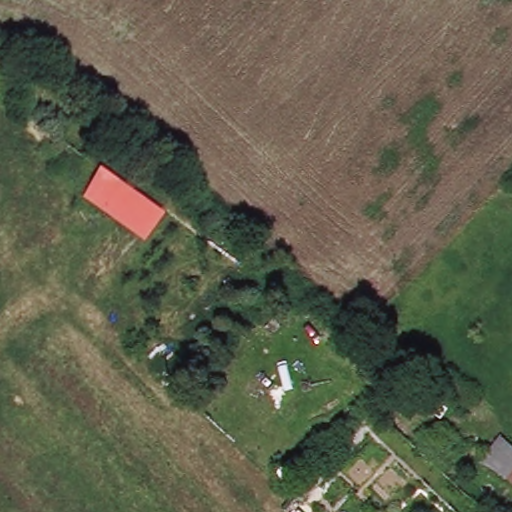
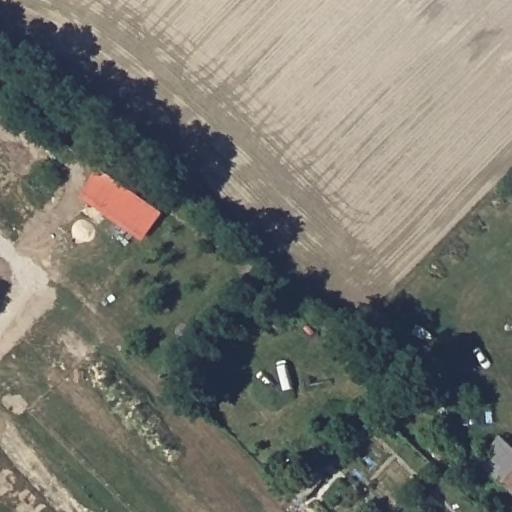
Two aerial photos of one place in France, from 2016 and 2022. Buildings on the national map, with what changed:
unchanged [(84,201),(101,167),(169,215),(143,246),(84,201)]
unchanged [(484,465),(505,437),(512,443),(512,490),(509,488),(484,465)]

